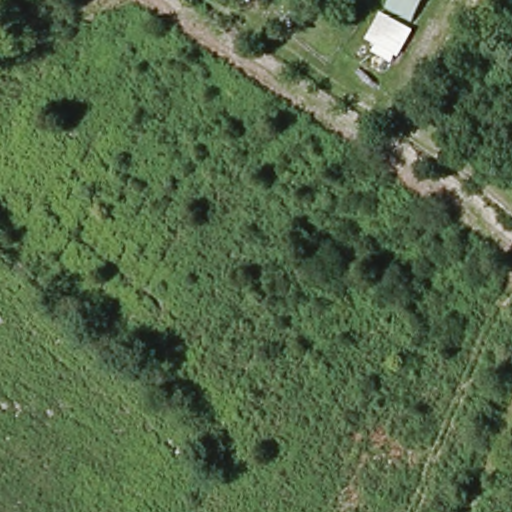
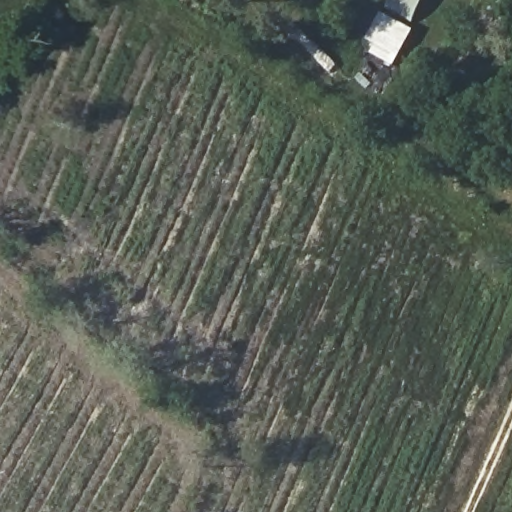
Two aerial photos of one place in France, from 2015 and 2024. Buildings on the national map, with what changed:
unchanged [(385,3),(386,0),(422,0),(413,19),(385,3)]
unchanged [(397,56),(363,36),(381,13),(412,30),(397,56)]

